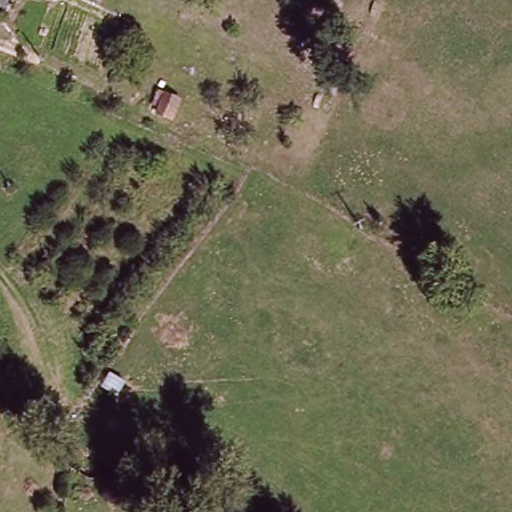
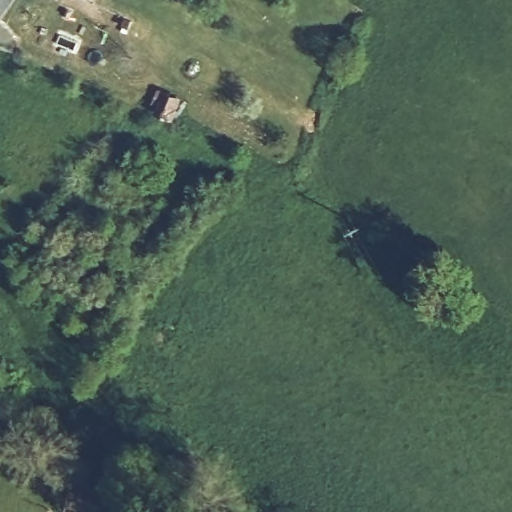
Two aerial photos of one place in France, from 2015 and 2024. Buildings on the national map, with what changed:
unchanged [(158,90),(175,99),(168,118),(150,110),(158,90)]

